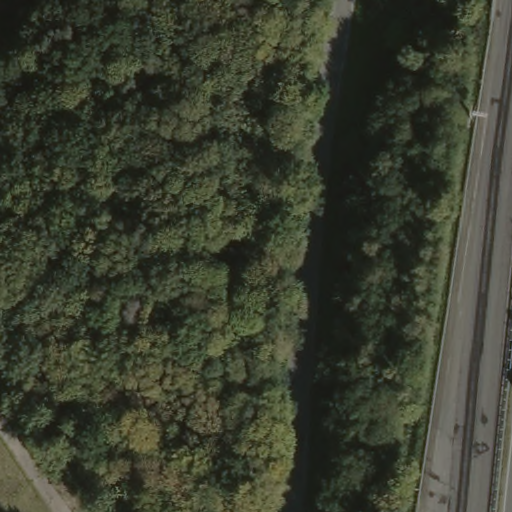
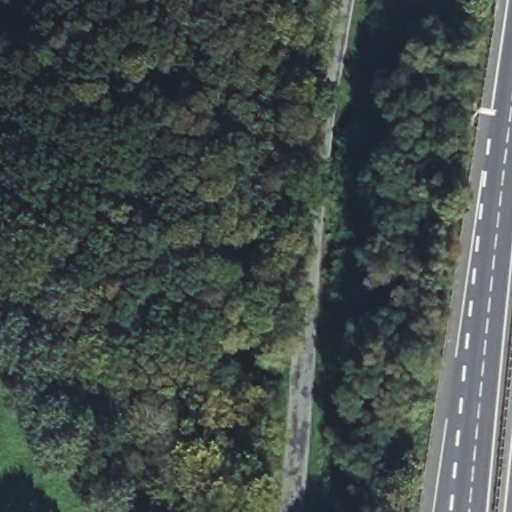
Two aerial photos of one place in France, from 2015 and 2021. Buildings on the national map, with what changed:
[]

